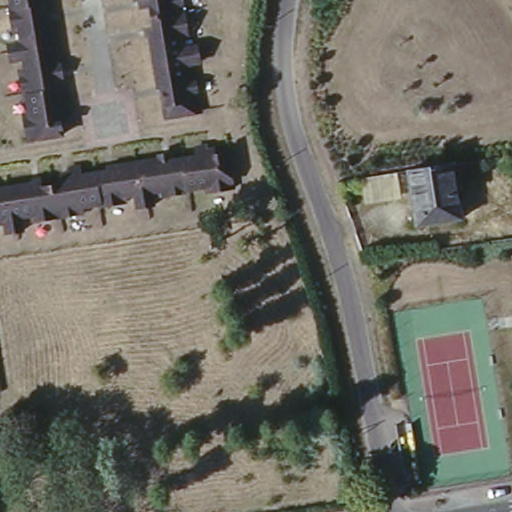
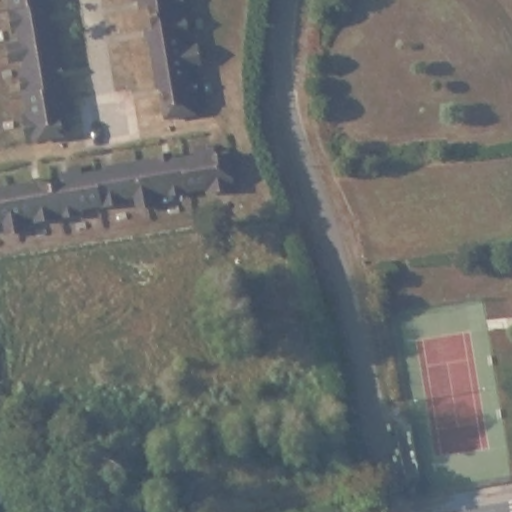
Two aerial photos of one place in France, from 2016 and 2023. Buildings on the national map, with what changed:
unchanged [(73,130),(34,135),(9,0),(49,0),(73,130)]
unchanged [(207,104),(169,110),(151,0),(191,0),(207,104)]
unchanged [(232,139),(239,182),(0,221),(0,183),(232,139)]
demolished [(461,213),(416,219),(407,164),(452,157),(452,159),(461,213)]

